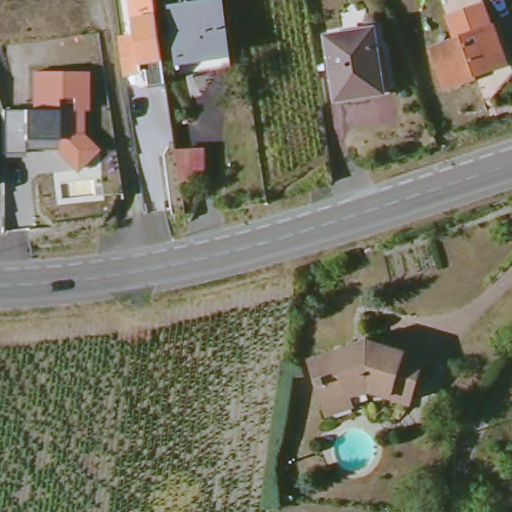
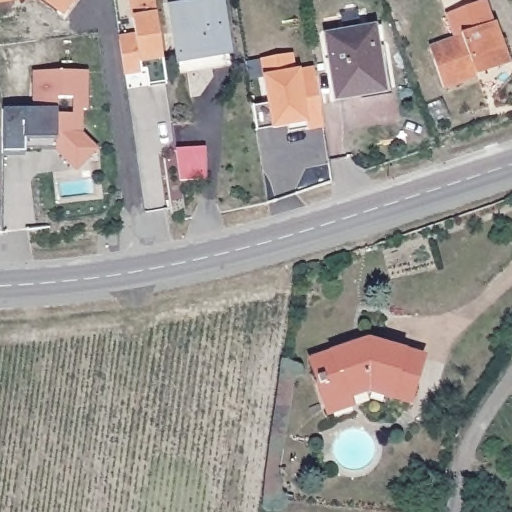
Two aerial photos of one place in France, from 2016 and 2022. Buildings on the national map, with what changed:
new [(0,7),(0,0),(33,0),(33,1),(0,7)]
new [(40,0),(80,0),(67,14),(40,0)]
unchanged [(140,71),(140,75),(125,76),(120,36),(135,32),(132,18),(129,0),(154,0),(156,14),(163,61),(165,83),(150,86),(147,70),(140,71)]
unchanged [(168,1),(176,0),(219,0),(229,61),(177,66),(168,1)]
unchanged [(432,50),(460,43),(444,0),(486,0),(510,69),(442,90),(432,50)]
unchanged [(365,93),(366,100),(335,103),(327,40),(375,35),(382,91),(365,93)]
new [(322,130),(306,133),(305,126),(271,131),(262,77),(260,61),(292,55),(296,71),(312,70),(322,130)]
unchanged [(88,111),(83,111),(83,135),(97,151),(77,173),(55,154),(56,149),(24,149),(24,154),(4,153),(5,111),(25,110),(33,110),(33,71),(87,73),(88,111)]
unchanged [(180,179),(176,149),(203,146),(207,177),(180,179)]
unchanged [(318,379),(314,380),(308,359),(355,345),(356,349),(374,345),(384,347),(385,343),(423,356),(407,401),(374,390),(347,396),(350,407),(328,412),(325,401),(318,379)]

